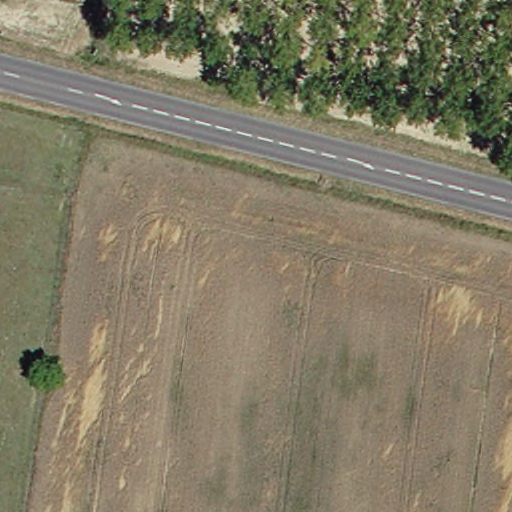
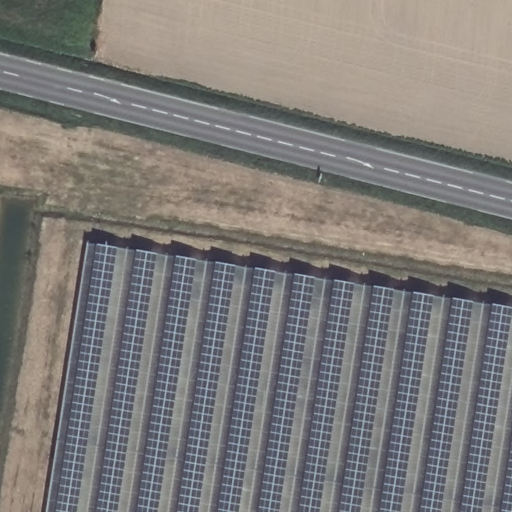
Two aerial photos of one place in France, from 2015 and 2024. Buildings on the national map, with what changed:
new [(47,512),(87,245),(512,309),(512,512),(47,512)]

